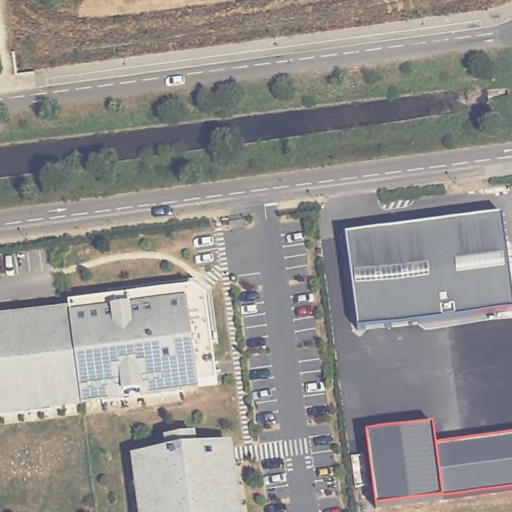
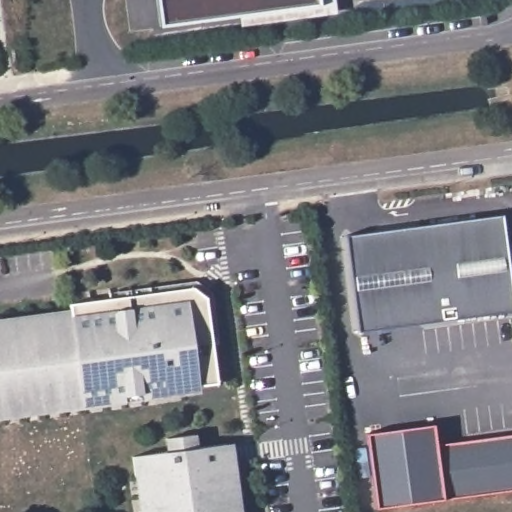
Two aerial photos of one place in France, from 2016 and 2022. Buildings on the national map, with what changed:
new [(336,14),(239,26),(239,17),(159,27),(155,0),(334,0),(336,14)]
unchanged [(477,217),(501,214),(504,237),(512,296),(512,311),(357,332),(344,235),(477,217)]
unchanged [(217,385),(197,388),(197,393),(92,406),(82,408),(81,401),(70,316),(67,303),(191,287),(208,302),(217,385)]
unchanged [(49,319),(0,325),(0,319),(48,313),(49,319)]
unchanged [(70,316),(81,401),(61,404),(0,412),(0,325),(49,319),(70,316)]
unchanged [(0,418),(0,412),(61,404),(62,410),(0,418)]
unchanged [(376,510),(365,434),(432,424),(437,444),(512,435),(512,492),(376,510)]
unchanged [(137,512),(130,457),(232,445),(242,512),(137,512)]

